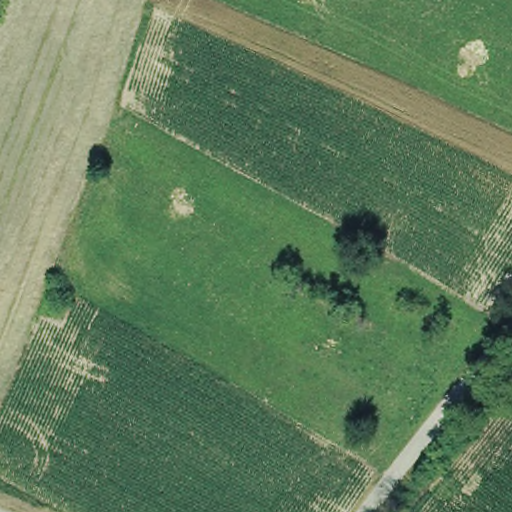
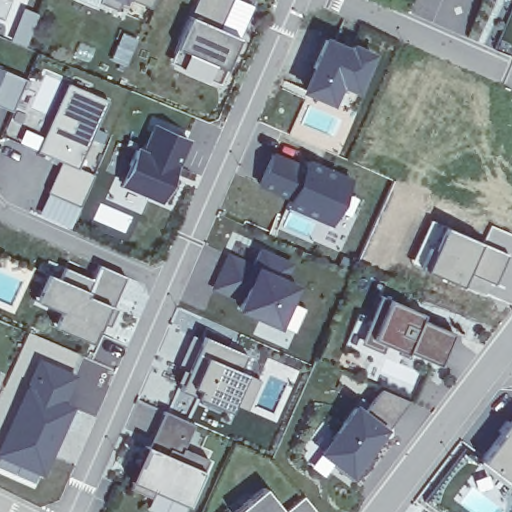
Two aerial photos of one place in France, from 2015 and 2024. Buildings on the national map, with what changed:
new [(112,10),(92,2),(93,0),(116,0),(112,10)]
new [(145,9),(125,0),(149,0),(145,9)]
new [(231,5),(220,29),(242,39),(228,71),(176,47),(198,0),(233,0),(231,5)]
new [(325,34),(353,45),(355,41),(380,52),(362,95),(345,88),(336,107),(300,90),(325,34)]
new [(12,111),(0,106),(0,67),(25,77),(12,111)]
new [(76,167),(92,174),(79,205),(47,192),(60,161),(35,150),(65,82),(105,99),(76,167)]
new [(118,184),(135,145),(141,147),(152,122),(190,139),(178,167),(177,166),(161,202),(118,184)]
new [(335,224),(257,188),(273,150),(305,165),(307,158),(357,180),(335,224)]
new [(510,254),(497,286),(472,273),(466,287),(426,269),(446,224),(510,254)]
new [(248,262),(257,244),(293,261),(287,279),(300,285),(280,329),(235,310),(240,300),(212,287),(227,252),(248,262)]
new [(113,306),(118,308),(110,325),(104,323),(94,344),(54,328),(62,310),(37,301),(50,274),(60,277),(65,266),(93,278),(100,265),(125,276),(113,306)]
new [(427,308),(425,314),(458,328),(440,370),(405,355),(405,358),(364,341),(385,290),(427,308)]
new [(245,368),(252,372),(235,418),(190,398),(208,355),(198,351),(206,335),(250,353),(245,368)]
new [(67,376),(55,404),(61,406),(42,449),(45,451),(35,472),(0,456),(0,436),(22,388),(21,388),(32,361),(67,376)]
new [(405,401),(381,432),(378,430),(361,453),(364,455),(345,480),(327,466),(330,462),(316,451),(350,407),(358,413),(377,389),(405,401)]
new [(187,506),(128,480),(144,443),(147,444),(163,411),(193,424),(182,448),(207,459),(202,470),(187,506)]
new [(512,427),(512,484),(486,465),(512,427)]
new [(283,511),(303,496),(316,512),(232,512),(263,487),(283,511)]

